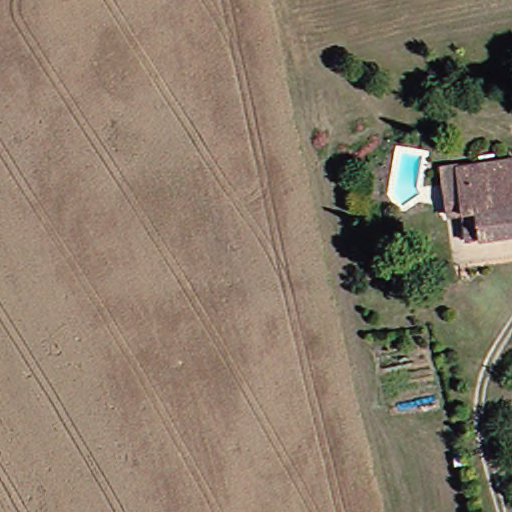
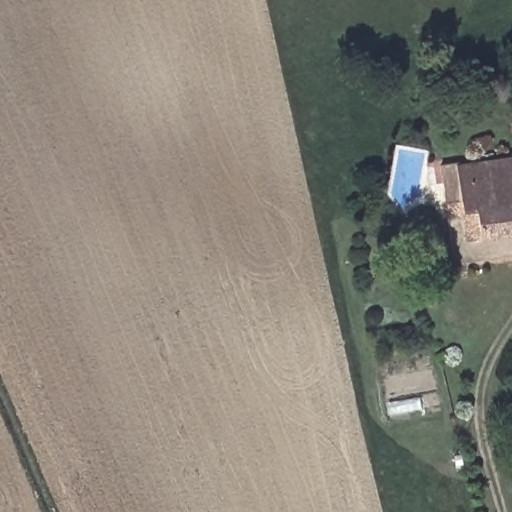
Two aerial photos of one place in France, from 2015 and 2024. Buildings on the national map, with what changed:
unchanged [(432,191),(430,165),(455,162),(455,166),(511,158),(512,165),(512,235),(460,242),(457,216),(435,218),(432,191)]

